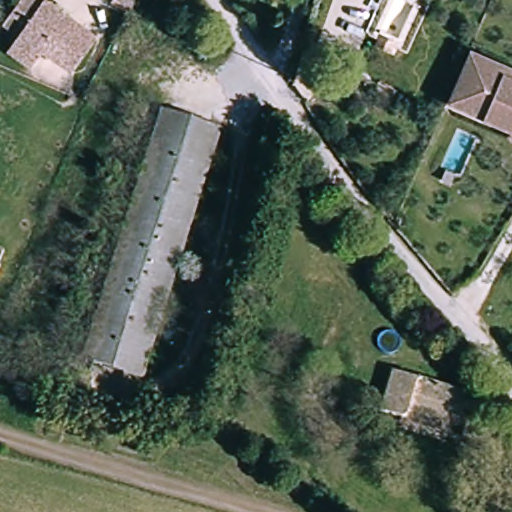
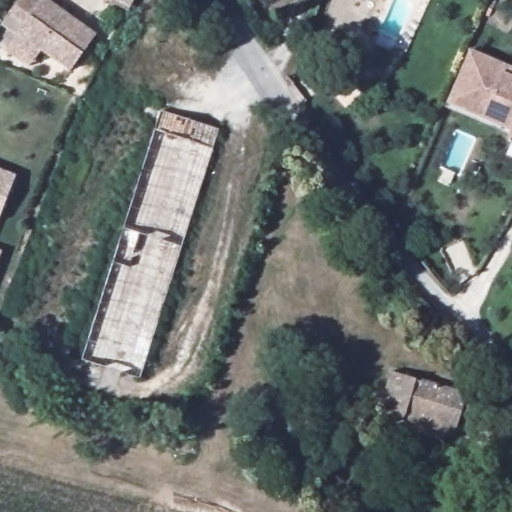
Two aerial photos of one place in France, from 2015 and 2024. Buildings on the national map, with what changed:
unchanged [(15,43),(25,31),(9,20),(23,0),(49,0),(96,33),(70,68),(40,47),(33,56),(27,64),(8,50),(15,43)]
unchanged [(117,3),(117,0),(142,0),(138,11),(117,3)]
unchanged [(451,108),(478,43),(503,53),(499,63),(512,69),(512,134),(508,133),(451,108)]
unchanged [(217,130),(149,336),(89,318),(157,110),(217,130)]
new [(15,178),(0,212),(0,172),(15,178)]
new [(7,252),(0,267),(0,249),(7,252)]
unchanged [(135,378),(77,359),(89,318),(149,336),(135,378)]
unchanged [(451,429),(404,413),(401,420),(377,412),(391,371),(462,396),(451,429)]
unchanged [(485,397),(503,411),(491,429),(472,415),(485,397)]

